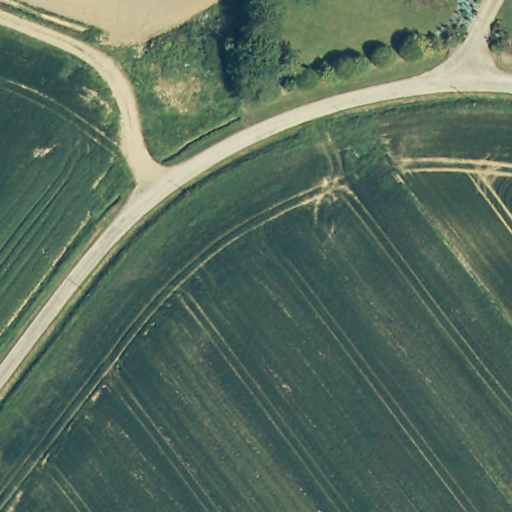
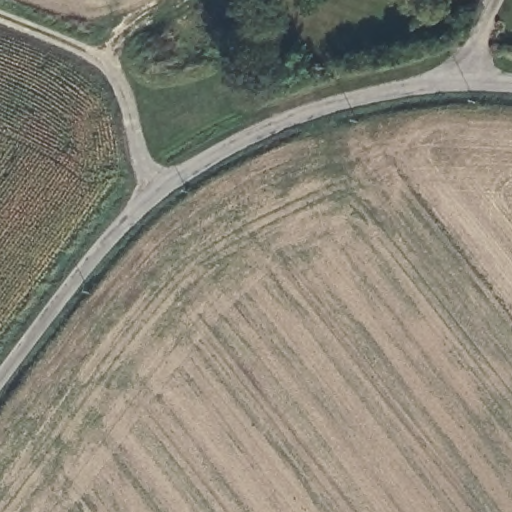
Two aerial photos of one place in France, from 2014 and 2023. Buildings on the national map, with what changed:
[]

